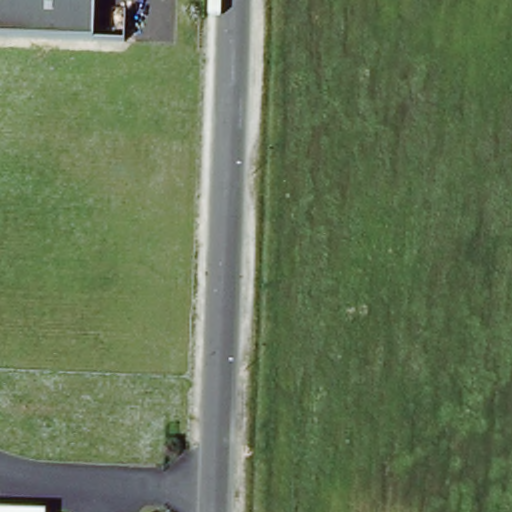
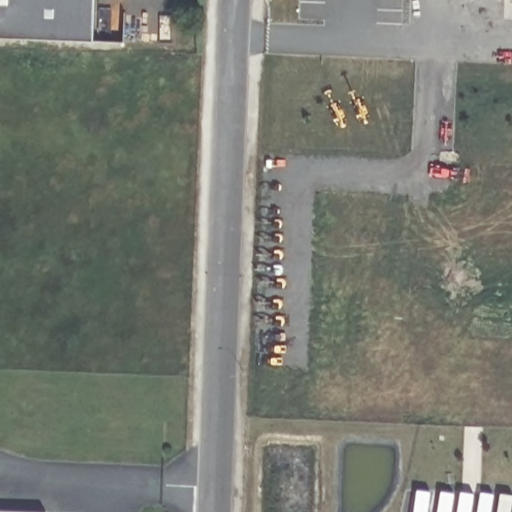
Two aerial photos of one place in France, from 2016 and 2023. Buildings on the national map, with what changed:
unchanged [(0,37),(0,0),(97,0),(96,40),(0,37)]
unchanged [(14,509),(40,512),(11,512),(14,509)]

